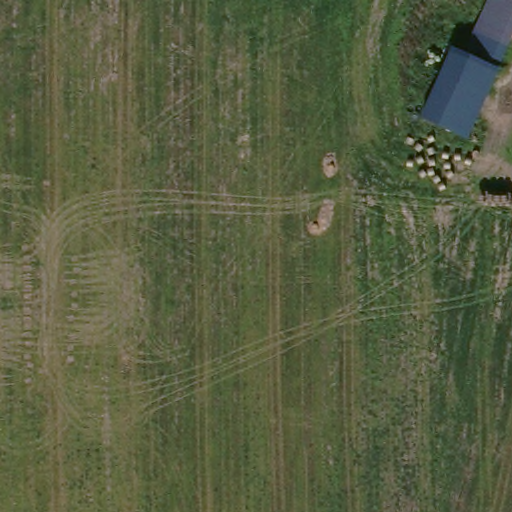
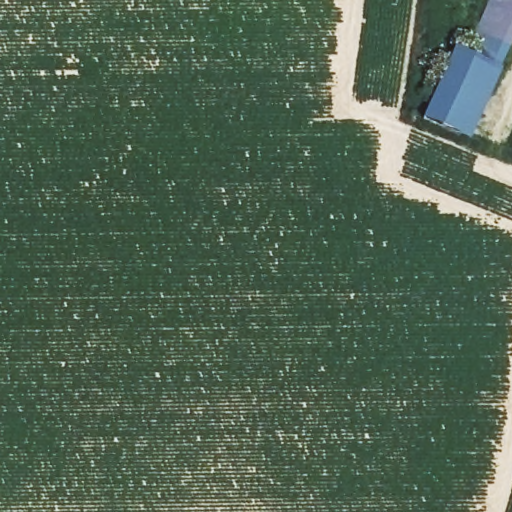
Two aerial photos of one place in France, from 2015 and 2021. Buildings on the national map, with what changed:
unchanged [(496,0),(512,0),(512,33),(505,47),(480,35),(496,0)]
unchanged [(468,58),(480,35),(505,47),(494,70),(462,139),(426,121),(458,53),(468,58)]

